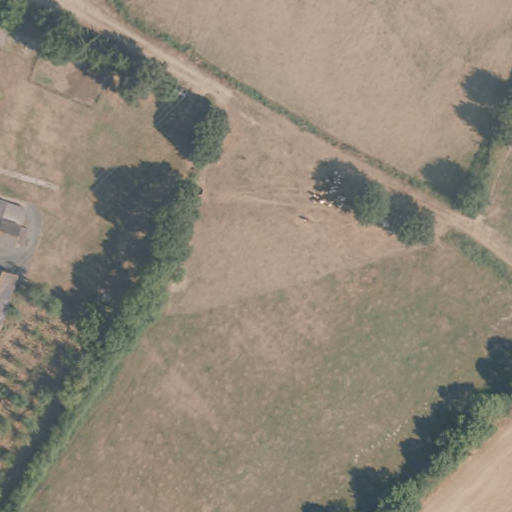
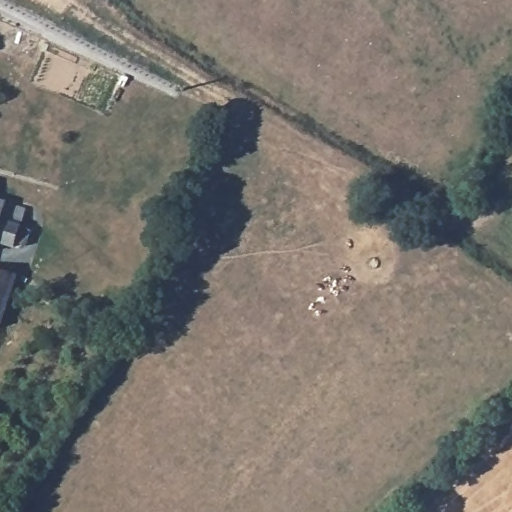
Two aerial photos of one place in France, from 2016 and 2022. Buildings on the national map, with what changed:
unchanged [(16,227),(32,232),(27,249),(12,245),(10,252),(0,249),(0,203),(22,210),(16,227)]
unchanged [(13,285),(0,321),(0,271),(16,277),(13,285)]

